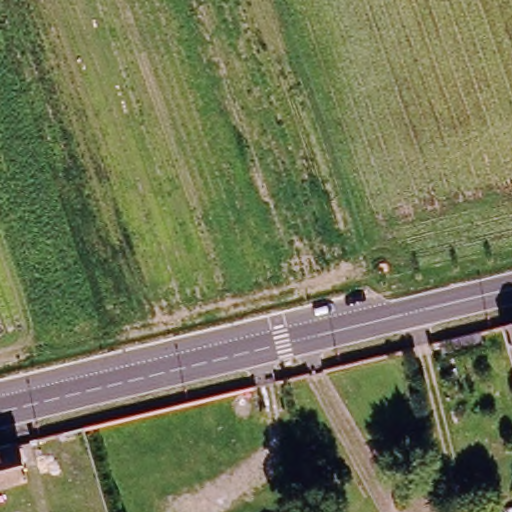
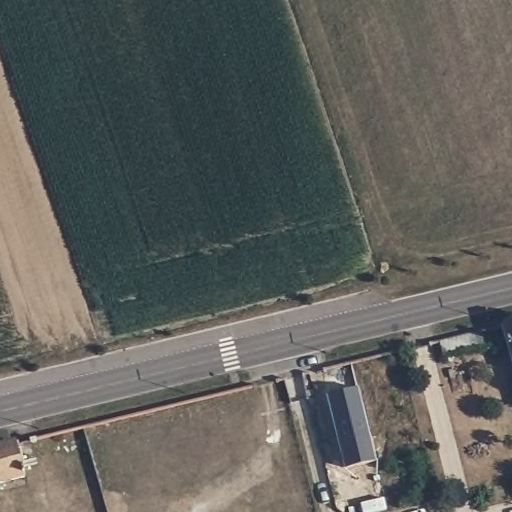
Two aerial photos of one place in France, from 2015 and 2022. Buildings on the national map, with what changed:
unchanged [(512,321),(512,362),(500,323),(512,321)]
unchanged [(480,333),(484,350),(445,359),(440,343),(480,333)]
new [(353,391),(372,463),(342,471),(324,398),(353,391)]
unchanged [(15,447),(24,480),(0,485),(0,451),(15,447)]

